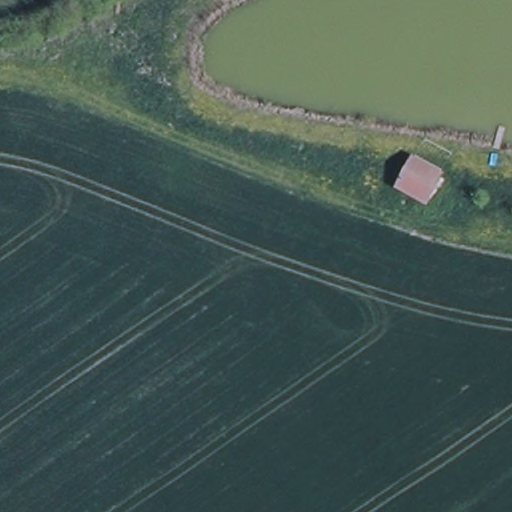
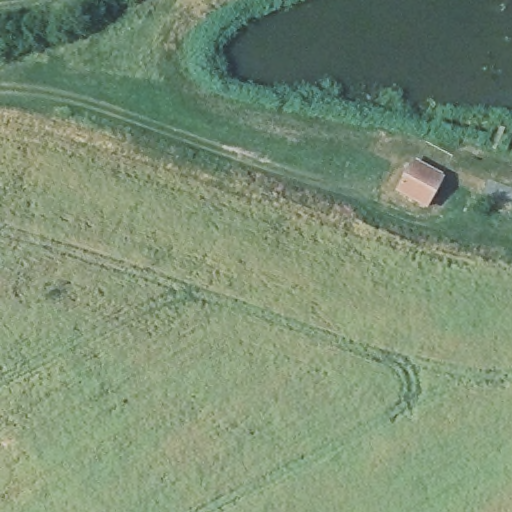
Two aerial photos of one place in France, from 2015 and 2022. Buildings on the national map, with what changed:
unchanged [(443,176),(428,205),(398,189),(414,160),(443,176)]

